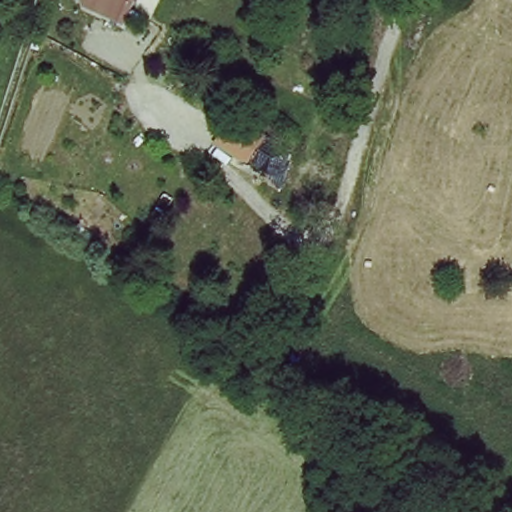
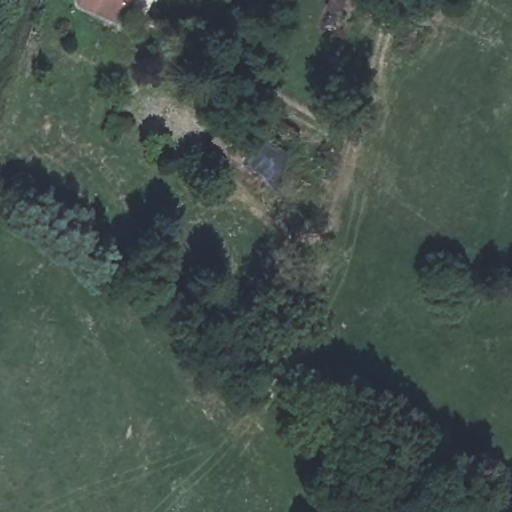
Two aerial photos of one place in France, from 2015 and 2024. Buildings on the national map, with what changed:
unchanged [(126,19),(82,0),(134,0),(126,19)]

